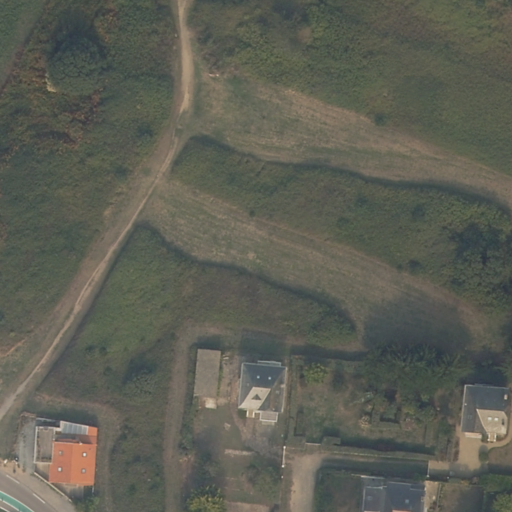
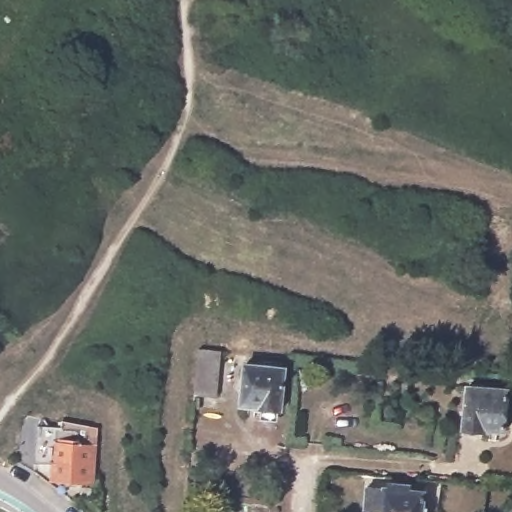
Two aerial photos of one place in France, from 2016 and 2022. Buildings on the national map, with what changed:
unchanged [(219,347),(216,392),(195,391),(198,345),(219,347)]
unchanged [(286,411),(246,409),(247,395),(246,395),(246,386),(248,386),(250,370),(288,372),(286,411)]
unchanged [(509,435),(469,430),(472,391),(512,395),(512,408),(509,435)]
unchanged [(102,441),(101,458),(95,458),(95,491),(57,491),(57,466),(40,465),(40,438),(59,438),(59,455),(74,456),(74,447),(91,446),(91,439),(102,441)]
unchanged [(435,490),(433,512),(374,512),(375,493),(396,495),(397,487),(435,490)]

